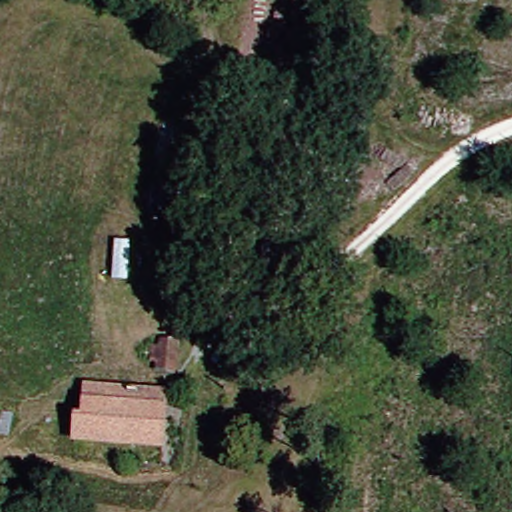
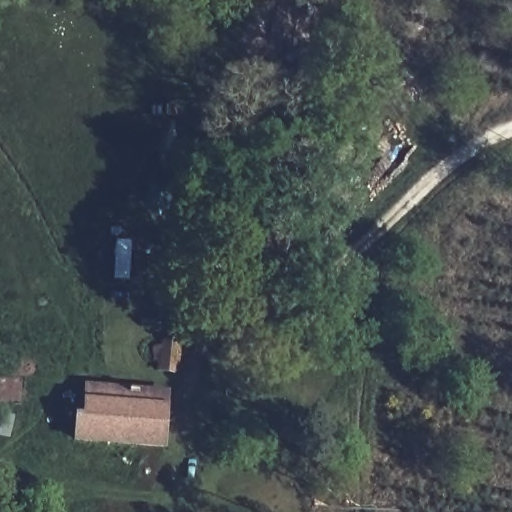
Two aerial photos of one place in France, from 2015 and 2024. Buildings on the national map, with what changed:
unchanged [(238,243),(220,242),(219,223),(240,225),(238,243)]
unchanged [(181,340),(178,370),(150,367),(152,333),(181,340)]
unchanged [(64,437),(66,406),(78,405),(80,385),(149,388),(171,391),(167,416),(167,446),(64,437)]

